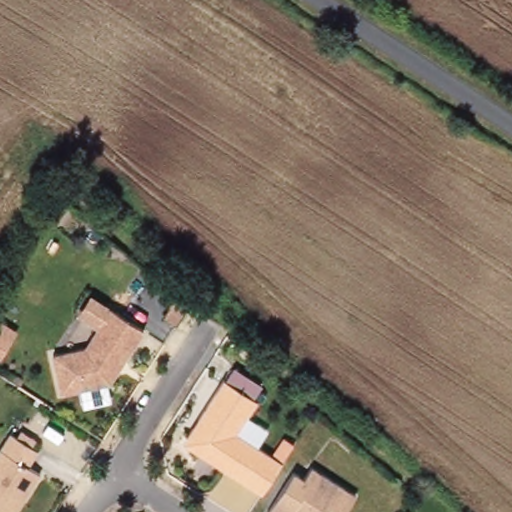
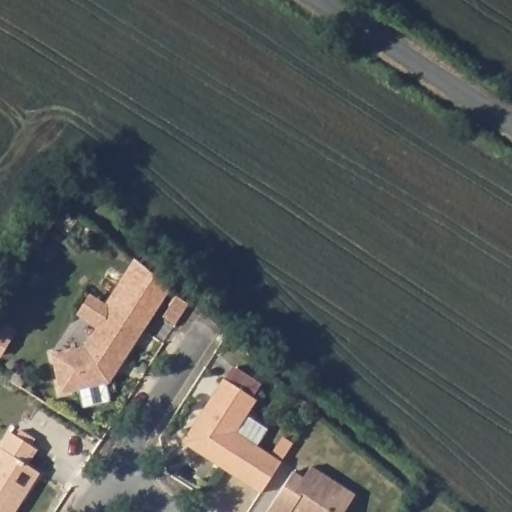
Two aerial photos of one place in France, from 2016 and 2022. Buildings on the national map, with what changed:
new [(125,319),(106,307),(96,323),(100,326),(98,330),(78,315),(91,292),(107,303),(135,258),(171,289),(144,331),(125,319)]
unchanged [(53,356),(86,350),(100,326),(96,323),(106,307),(144,331),(110,385),(62,395),(53,356)]
unchanged [(258,402),(237,435),(283,465),(278,472),(263,495),(184,445),(225,381),(258,402)]
unchanged [(36,474),(12,512),(0,512),(0,444),(7,433),(13,437),(17,431),(31,440),(27,446),(34,450),(24,466),(36,474)]
unchanged [(301,480),(308,469),(353,498),(344,512),(266,512),(290,473),(301,480)]

